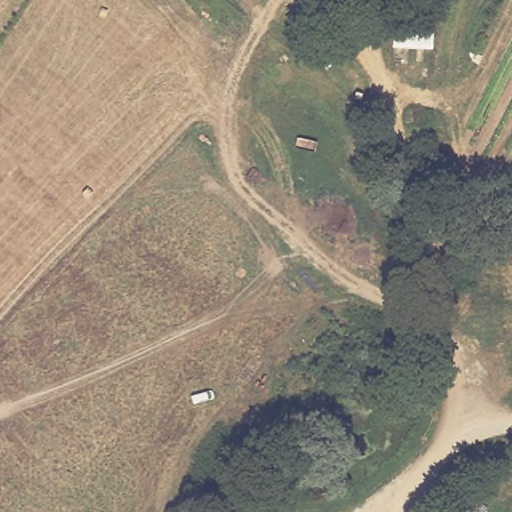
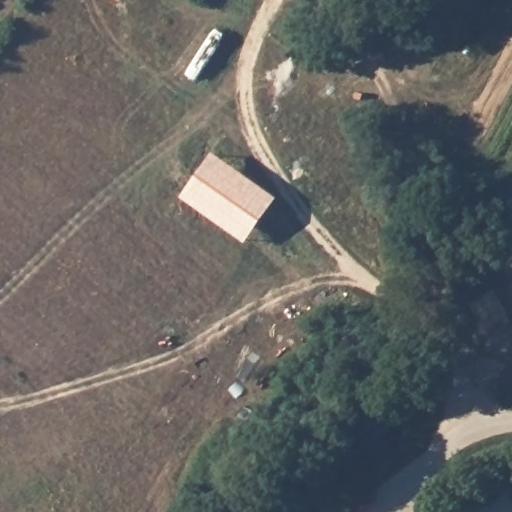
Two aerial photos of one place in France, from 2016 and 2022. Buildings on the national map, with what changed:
new [(212,152),(277,199),(245,244),(180,197),(212,152)]

